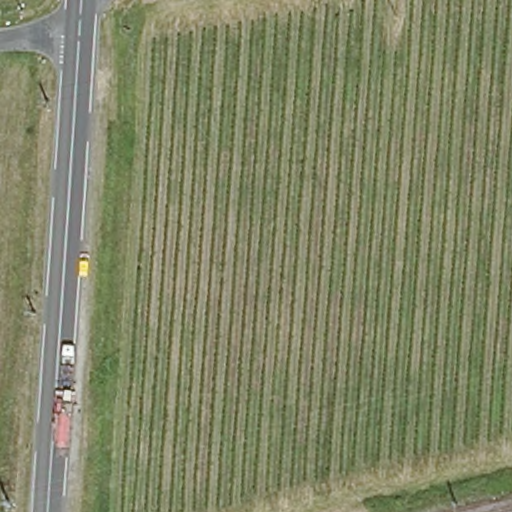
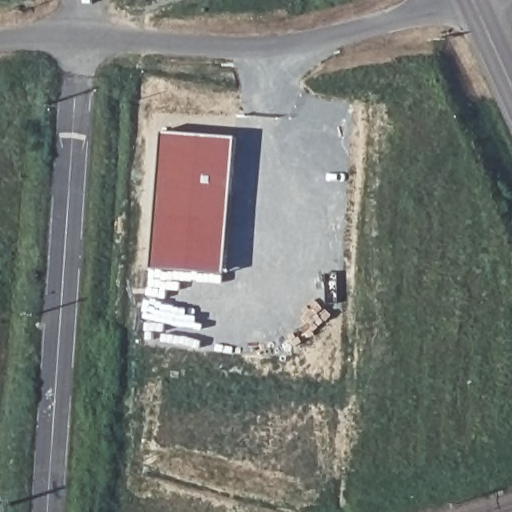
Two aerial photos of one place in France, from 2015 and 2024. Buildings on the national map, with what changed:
new [(238,138),(227,274),(153,268),(164,132),(238,138)]

